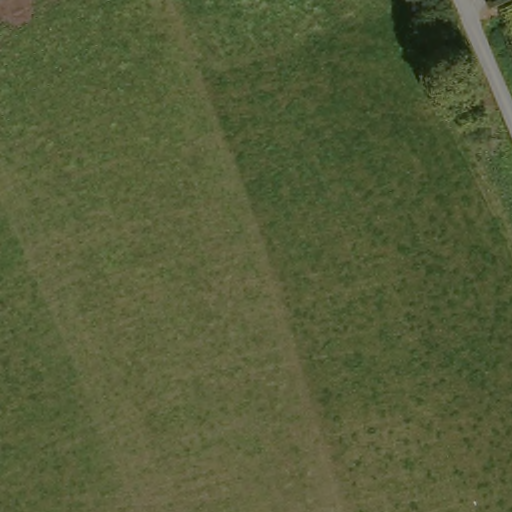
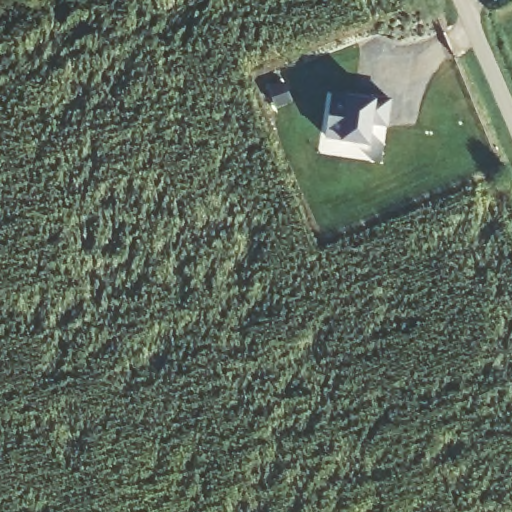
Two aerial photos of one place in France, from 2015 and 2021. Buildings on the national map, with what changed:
new [(347,96),(374,102),(374,97),(389,99),(386,125),(372,123),(370,142),(342,138),(326,135),(333,94),(347,96)]

